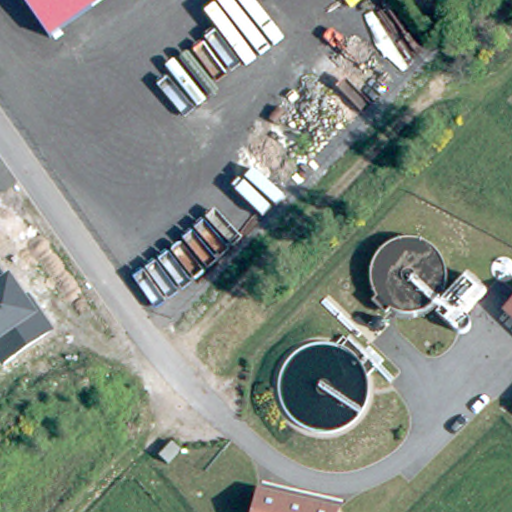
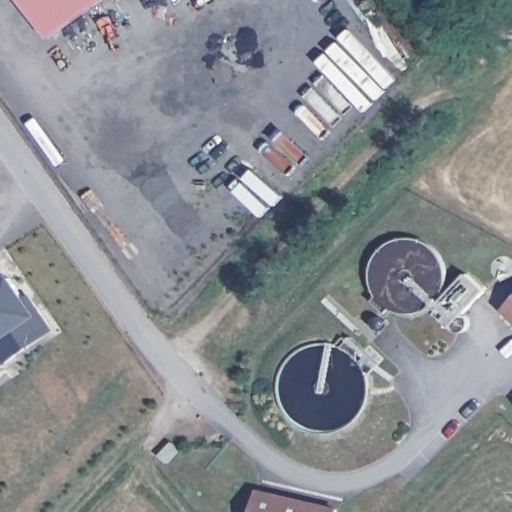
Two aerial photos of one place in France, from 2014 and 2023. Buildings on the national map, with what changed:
unchanged [(49,37),(23,0),(100,0),(49,37)]
unchanged [(0,366),(0,273),(3,277),(11,273),(25,297),(28,295),(52,331),(0,366)]
unchanged [(487,293),(455,331),(432,313),(469,273),(487,293)]
unchanged [(338,512),(250,512),(254,488),(339,506),(338,512)]

